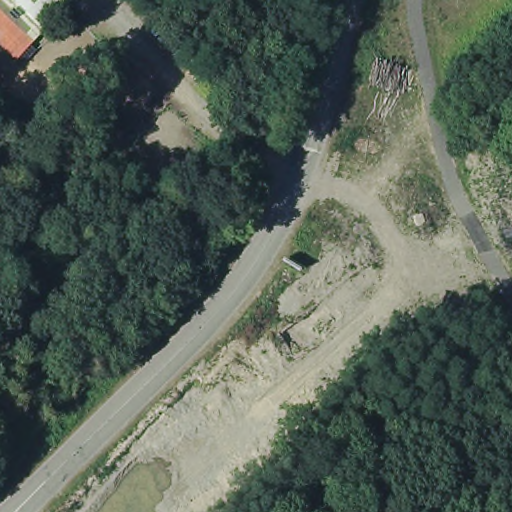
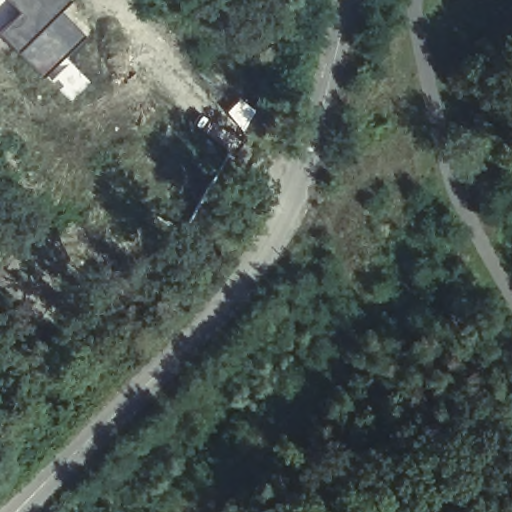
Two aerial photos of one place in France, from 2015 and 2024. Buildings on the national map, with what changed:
unchanged [(0,48),(0,0),(70,0),(71,1),(12,60),(0,48)]

